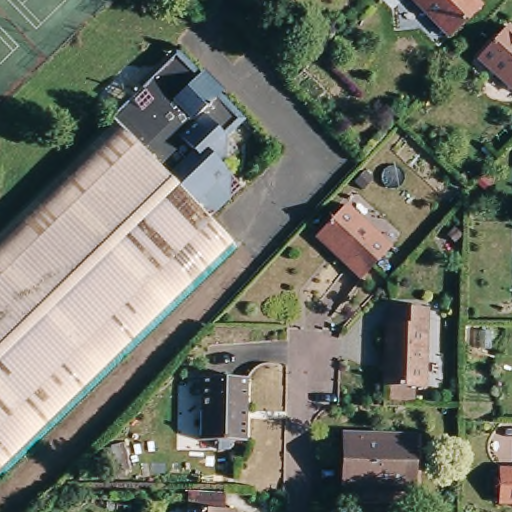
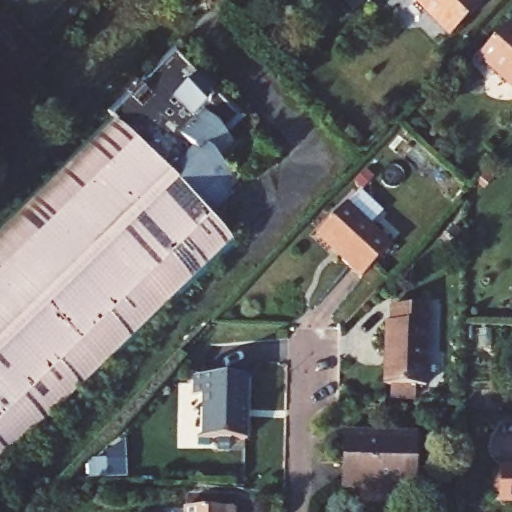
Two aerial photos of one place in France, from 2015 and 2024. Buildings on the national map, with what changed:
unchanged [(479,5),(448,35),(414,0),(475,0),(479,5)]
unchanged [(507,26),(512,30),(512,89),(477,57),(507,26)]
unchanged [(107,117),(127,97),(123,93),(135,82),(138,86),(149,76),(152,78),(168,62),(182,62),(230,112),(230,127),(222,136),(237,152),(220,167),(240,189),(208,220),(235,247),(0,478),(0,225),(110,119),(107,117)]
unchanged [(320,232),(345,205),(392,247),(362,277),(338,256),(317,236),(320,232)]
unchanged [(385,317),(392,317),(392,302),(426,303),(424,382),(383,382),(385,317)]
unchanged [(230,444),(217,443),(213,440),(214,436),(202,436),(203,391),(192,390),(193,372),(248,374),(247,436),(234,436),(234,440),(230,444)]
unchanged [(340,431),(409,432),(408,485),(338,483),(340,431)]
unchanged [(505,475),(506,463),(512,464),(512,498),(505,498),(505,490),(500,490),(500,475),(505,475)]
unchanged [(232,505),(232,512),(185,512),(185,503),(232,505)]

